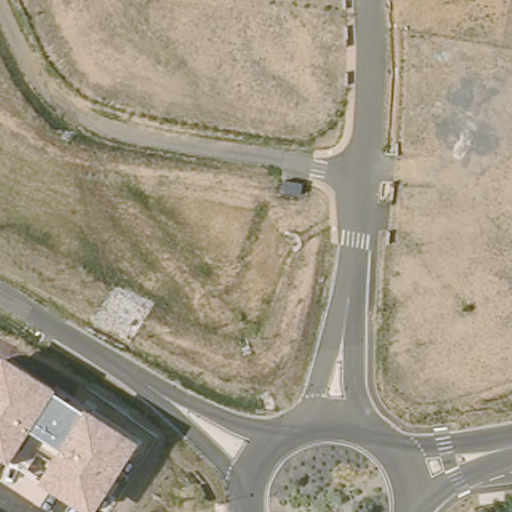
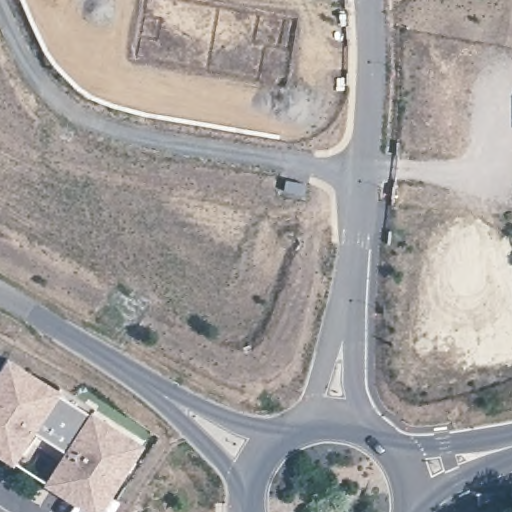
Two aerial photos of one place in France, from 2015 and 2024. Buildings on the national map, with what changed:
unchanged [(96,512),(89,512),(42,481),(63,449),(33,430),(11,462),(0,455),(0,364),(5,357),(140,441),(96,512)]

